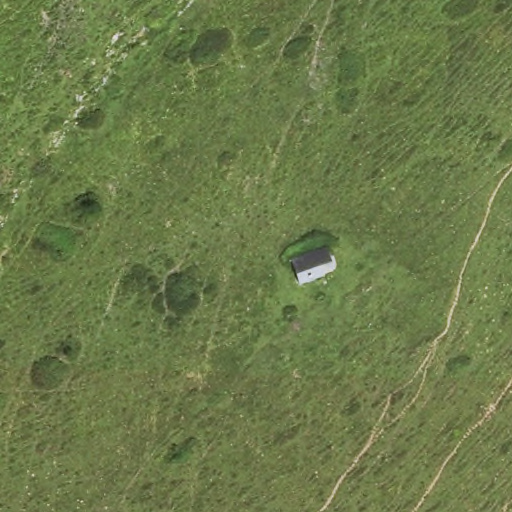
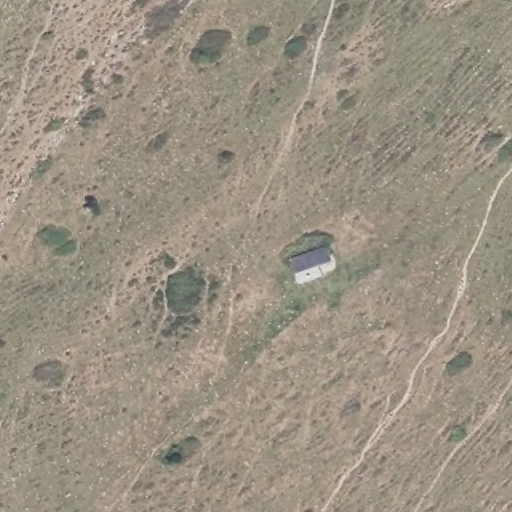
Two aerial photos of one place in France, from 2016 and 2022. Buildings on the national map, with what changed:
unchanged [(286,261),(320,249),(327,263),(317,266),(321,280),(296,287),(286,261)]

